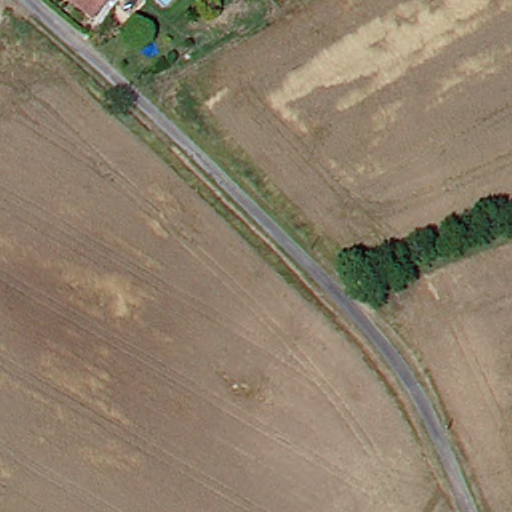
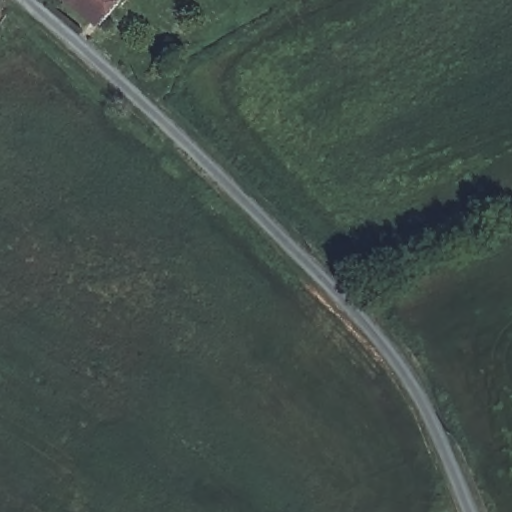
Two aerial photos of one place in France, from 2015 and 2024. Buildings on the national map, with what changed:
unchanged [(64,0),(110,0),(99,19),(64,0)]

